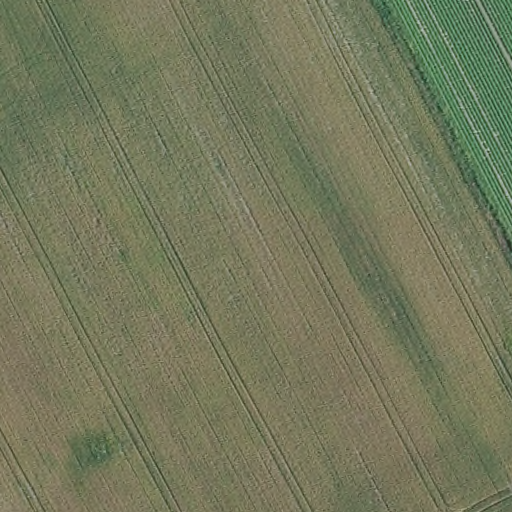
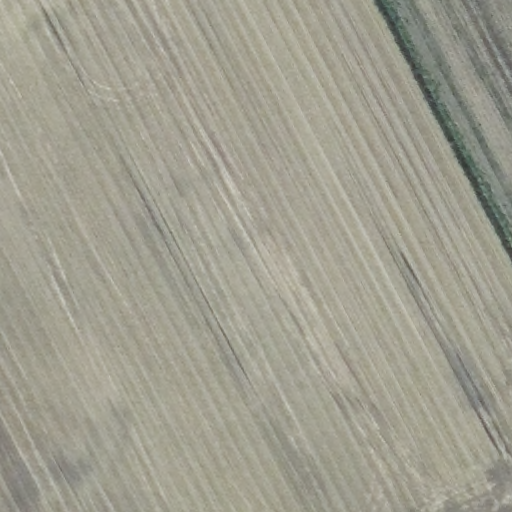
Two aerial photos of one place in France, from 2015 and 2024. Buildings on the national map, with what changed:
[]

